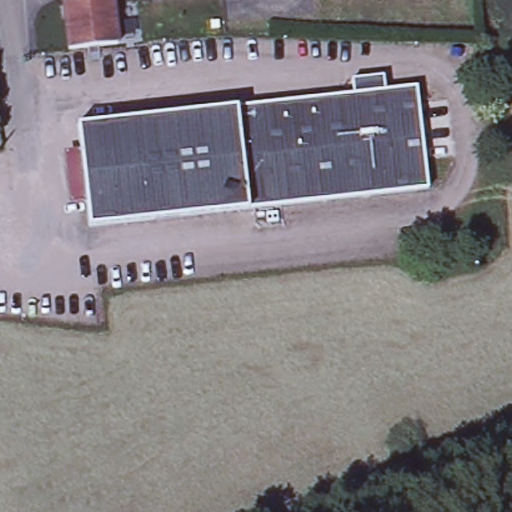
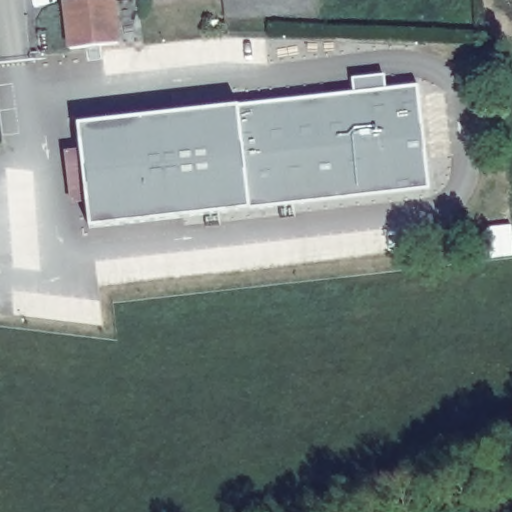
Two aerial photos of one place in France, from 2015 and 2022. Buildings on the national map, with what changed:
unchanged [(66,19),(65,0),(114,0),(116,21),(116,23),(116,24),(117,38),(68,44),(67,21),(66,20),(66,19)]
unchanged [(416,80),(418,99),(424,154),(426,184),(88,221),(77,119),(416,80)]
unchanged [(447,95),(452,151),(424,154),(418,99),(447,95)]

